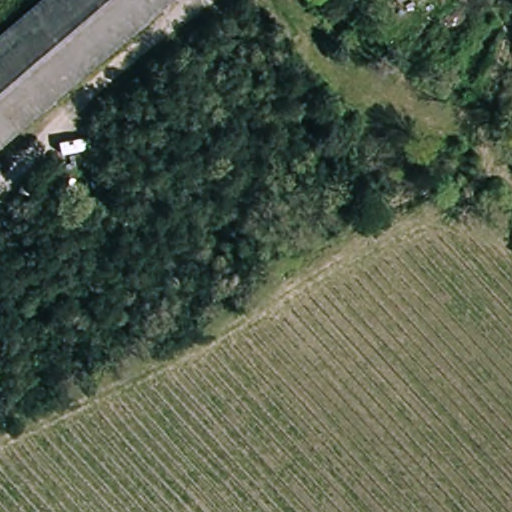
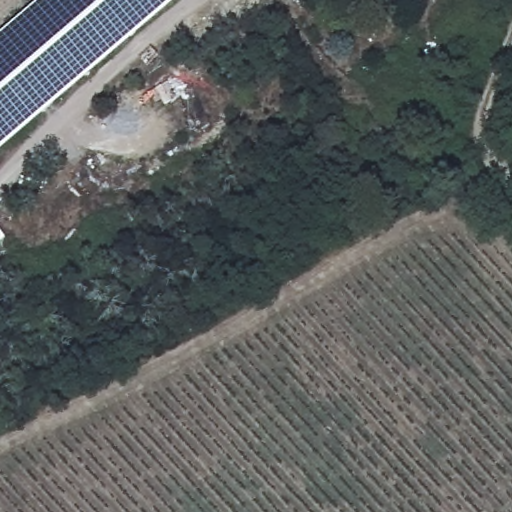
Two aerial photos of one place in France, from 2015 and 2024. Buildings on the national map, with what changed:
unchanged [(0,151),(0,32),(37,0),(177,0),(0,151)]

